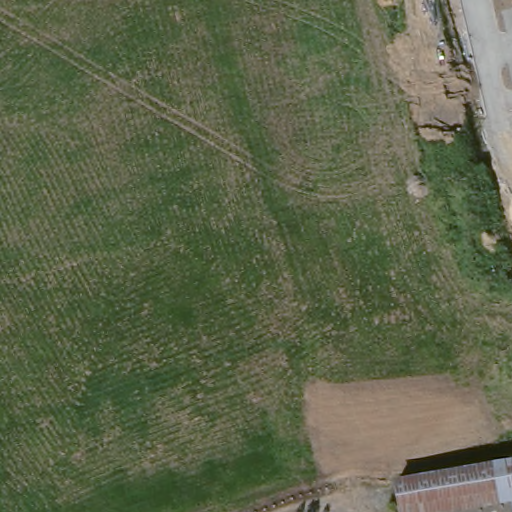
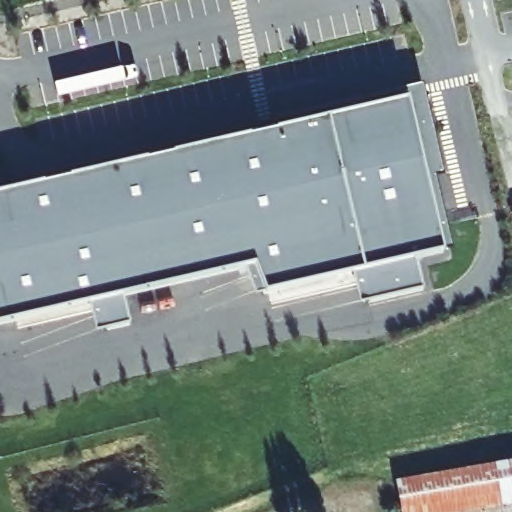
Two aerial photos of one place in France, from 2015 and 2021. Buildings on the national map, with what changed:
new [(273,119),(422,84),(444,175),(437,177),(453,249),(416,258),(422,289),(360,304),(352,273),(266,292),(255,295),(245,268),(122,295),(129,323),(96,331),(90,304),(0,324),(0,191),(276,128),(273,119)]
unchanged [(405,482),(512,463),(512,512),(411,512),(405,482)]

